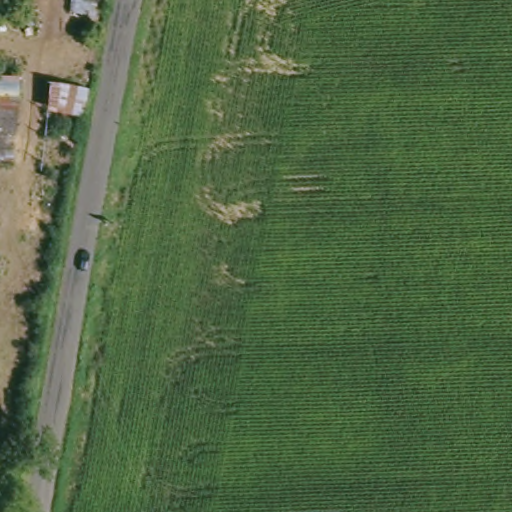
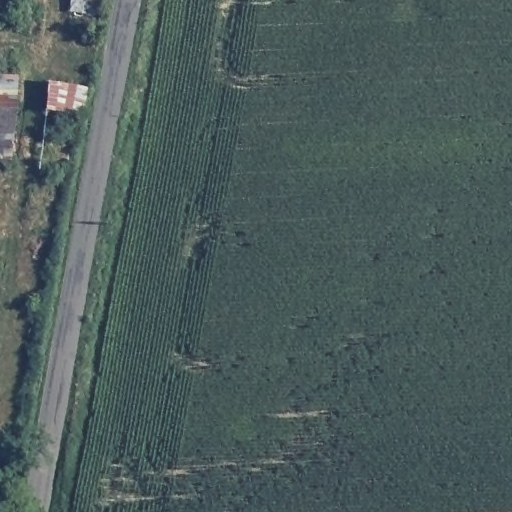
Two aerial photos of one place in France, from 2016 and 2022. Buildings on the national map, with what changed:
unchanged [(87,3),(85,13),(65,11),(66,0),(92,0),(91,4),(87,3)]
unchanged [(0,75),(14,78),(0,142),(0,75)]
unchanged [(65,126),(28,118),(35,90),(70,98),(65,126)]

